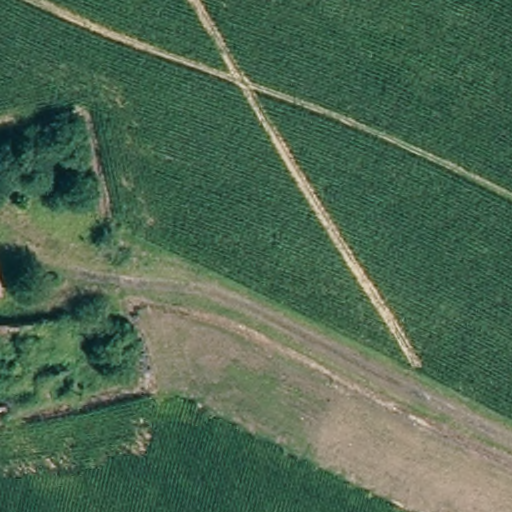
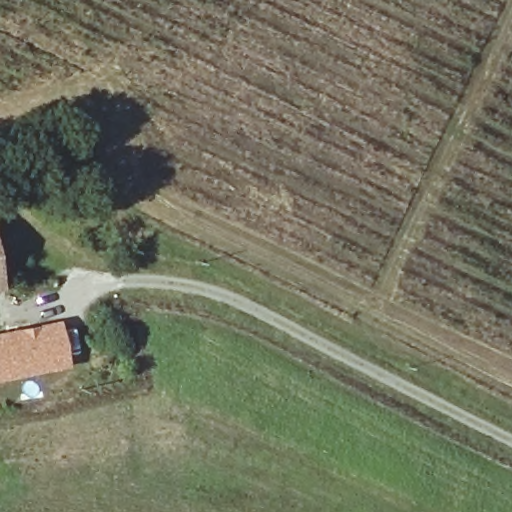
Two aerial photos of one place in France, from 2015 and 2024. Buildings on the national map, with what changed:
demolished [(27,348),(0,350),(0,319),(66,311),(76,384),(37,402),(27,348)]
new [(71,367),(0,381),(0,332),(61,320),(71,367)]

